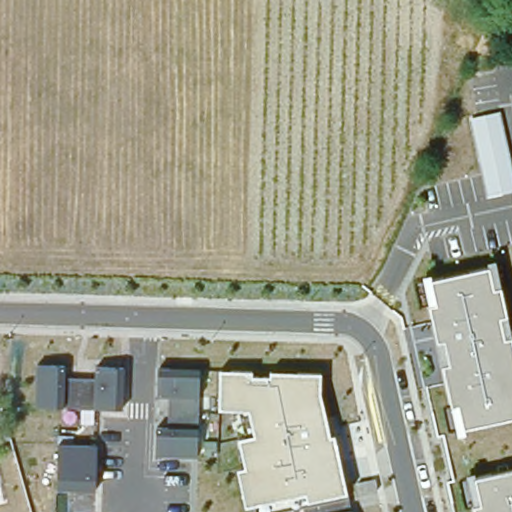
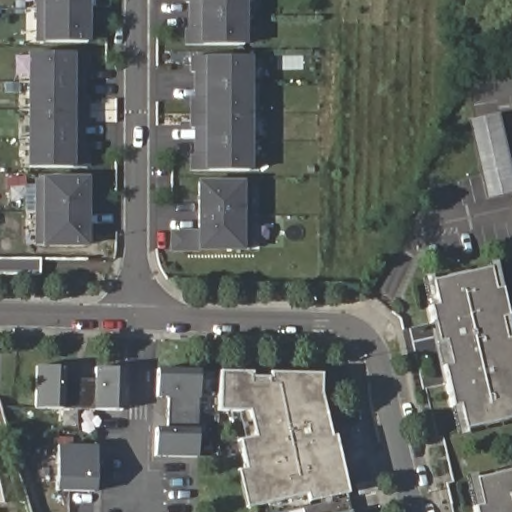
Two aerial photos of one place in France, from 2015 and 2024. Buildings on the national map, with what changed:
new [(39,41),(38,0),(89,0),(89,42),(39,41)]
new [(200,44),(186,44),(185,0),(248,0),(248,45),(200,44)]
new [(75,53),(90,54),(90,167),(74,167),(28,167),(27,52),(75,53)]
new [(204,57),(252,57),(252,171),(204,171),(190,170),(191,56),(204,57)]
unchanged [(487,197),(470,119),(500,112),(512,168),(512,192),(487,197)]
new [(89,177),(89,247),(40,246),(40,176),(89,177)]
new [(255,252),(197,252),(170,252),(170,231),(195,231),(195,180),(255,181),(255,252)]
new [(18,274),(0,273),(0,258),(18,258),(44,258),(44,275),(18,274)]
unchanged [(458,432),(424,284),(497,267),(512,335),(512,420),(458,432)]
unchanged [(124,410),(40,407),(40,364),(65,366),(65,379),(94,380),(95,367),(126,368),(124,410)]
unchanged [(158,457),(159,429),(169,428),(169,399),(157,399),(159,369),(202,372),(199,458),(158,457)]
unchanged [(304,496),(244,508),(237,472),(244,468),(239,439),(252,435),(247,412),(219,411),(219,370),(322,373),(323,396),(330,436),(335,435),(348,495),(351,512),(307,512),(304,496)]
unchanged [(57,492),(59,447),(95,447),(98,492),(57,492)]
unchanged [(468,482),(512,471),(512,512),(475,512),(468,482)]

